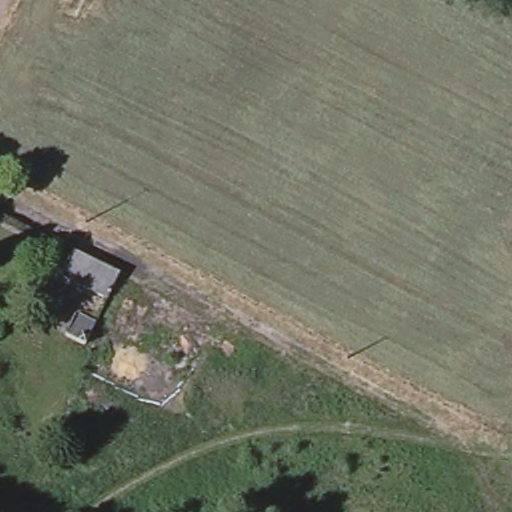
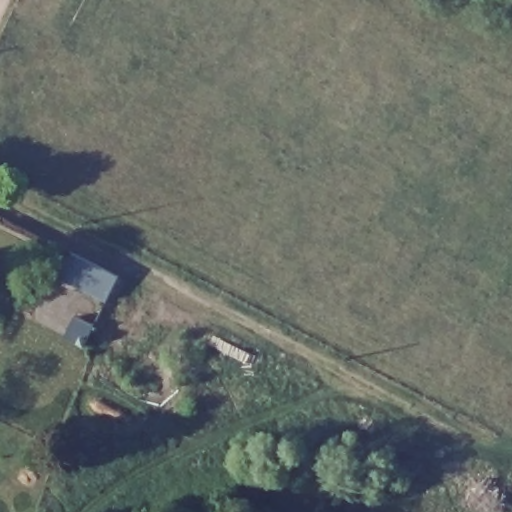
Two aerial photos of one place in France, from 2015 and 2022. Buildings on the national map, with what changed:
unchanged [(103,310),(56,286),(65,261),(112,285),(103,310)]
unchanged [(92,351),(70,340),(76,322),(98,333),(92,351)]

